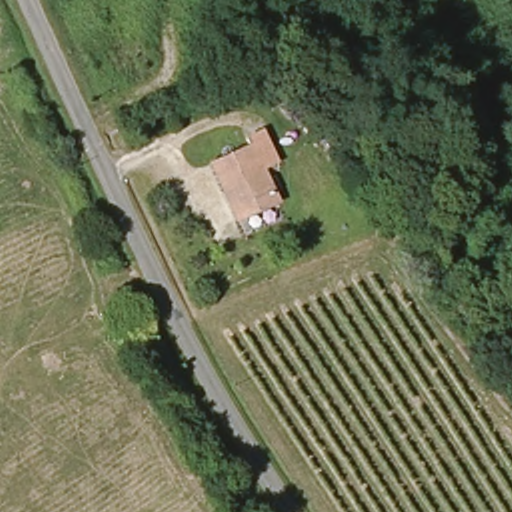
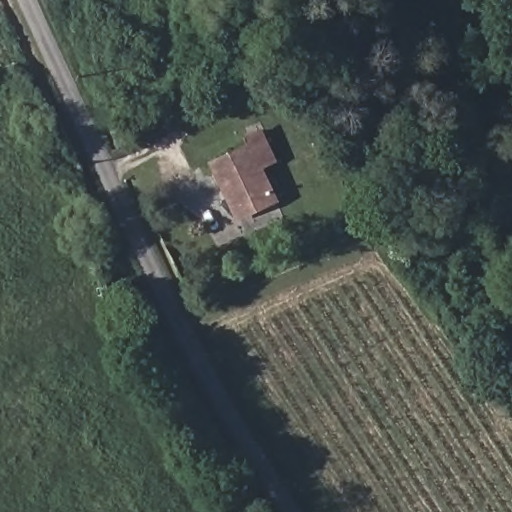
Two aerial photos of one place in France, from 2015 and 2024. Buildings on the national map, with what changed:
unchanged [(234,199),(217,166),(254,147),(251,140),(264,133),(278,162),(265,168),(281,201),(248,217),(244,219),(234,199)]

